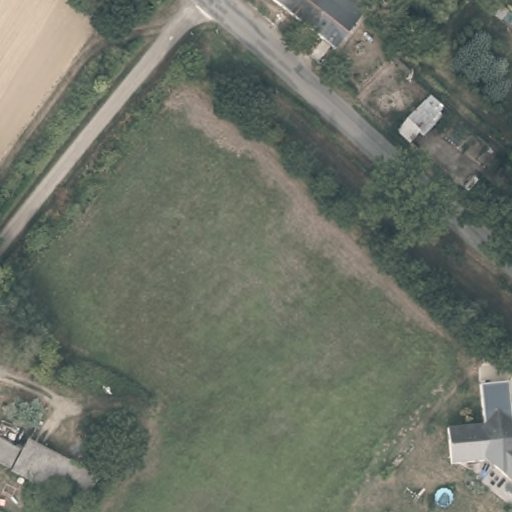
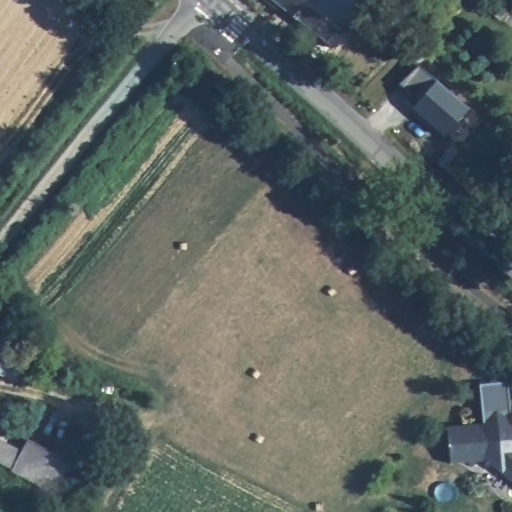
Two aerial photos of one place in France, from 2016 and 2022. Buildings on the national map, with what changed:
unchanged [(144,2),(141,0),(146,0),(144,2)]
unchanged [(268,0),(351,0),(363,10),(330,52),(268,0)]
new [(421,64),(472,109),(446,137),(406,102),(412,94),(401,85),(421,64)]
unchanged [(496,467),(496,462),(453,469),(448,434),(484,428),(477,389),(504,384),(511,424),(512,425),(512,479),(496,467)]
unchanged [(0,464),(0,440),(22,452),(13,471),(0,464)]
unchanged [(16,473),(33,444),(69,465),(53,494),(16,473)]
unchanged [(69,465),(70,463),(99,483),(84,511),(53,494),(69,465)]

